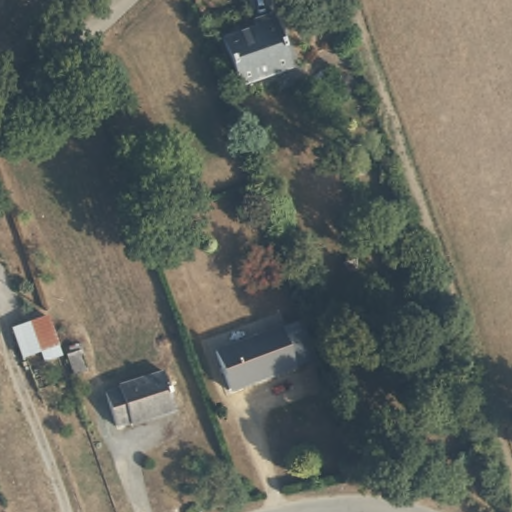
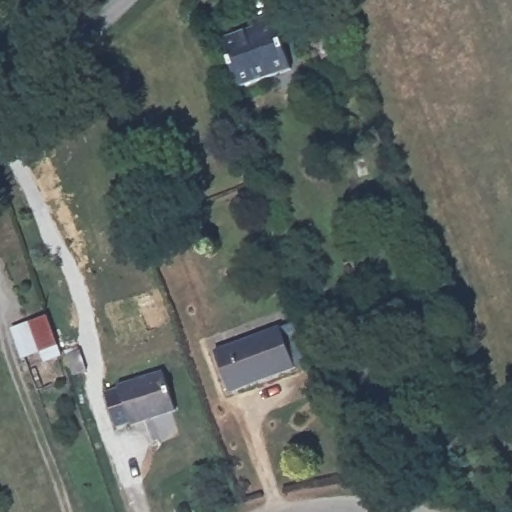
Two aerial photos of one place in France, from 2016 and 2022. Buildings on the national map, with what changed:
unchanged [(234,82),(220,38),(255,25),(254,20),(273,15),(288,61),(234,82)]
unchanged [(49,355),(37,360),(27,326),(38,321),(49,355)]
unchanged [(292,365),(229,388),(215,348),(279,325),(292,365)]
unchanged [(55,353),(70,349),(78,370),(62,375),(55,353)]
unchanged [(172,409),(119,425),(108,391),(119,387),(118,383),(160,370),(172,409)]

